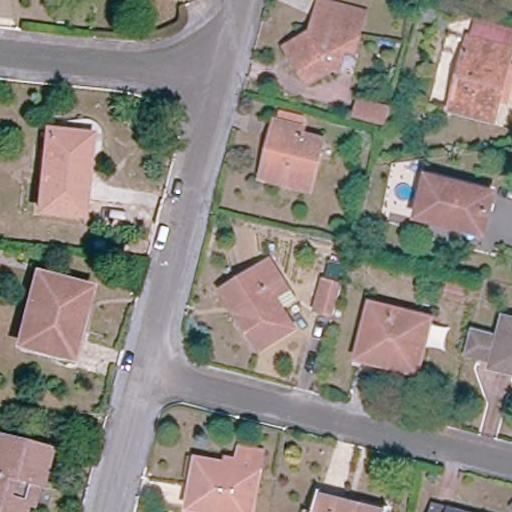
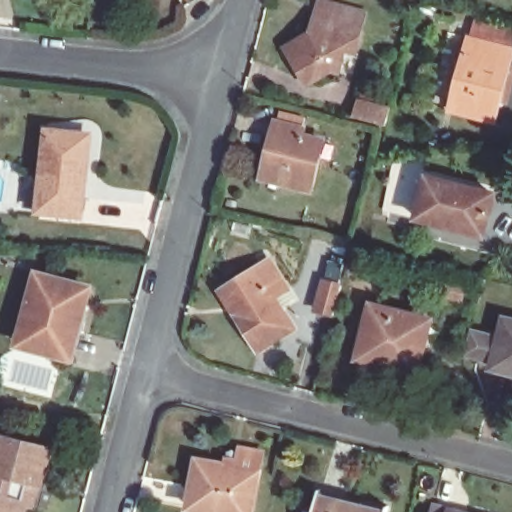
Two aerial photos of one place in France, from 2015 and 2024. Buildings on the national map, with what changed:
unchanged [(305,36),(321,25),(325,12),(328,0),(349,5),(372,11),(363,47),(353,45),(346,70),(336,67),(318,80),(305,56),(296,42),(305,36)]
unchanged [(502,98),(496,119),(454,109),(470,46),(472,40),(478,19),(512,27),(512,56),(510,64),(512,64),(512,95),(511,99),(502,98)]
unchanged [(363,98),(394,105),(388,127),(358,118),(363,98)]
unchanged [(280,140),(283,125),(310,130),(310,138),(329,142),(316,193),(274,183),(267,181),(280,140)]
unchanged [(85,135),(84,169),(93,170),(89,219),(41,213),(48,131),(85,135)]
unchanged [(432,180),(496,195),(486,235),(422,220),(432,180)]
unchanged [(289,287),(278,295),(296,327),(261,347),(242,312),(226,286),(234,281),(272,258),(289,287)]
unchanged [(41,281),(90,296),(84,317),(71,361),(21,346),(41,281)]
unchanged [(317,314),(325,284),(343,288),(335,318),(317,314)]
unchanged [(418,377),(390,370),(361,365),(373,310),(423,320),(430,322),(418,377)]
unchanged [(502,334),(506,317),(512,319),(512,370),(495,365),(496,358),(465,351),(471,327),(502,334)]
unchanged [(51,455),(40,490),(27,486),(21,506),(30,510),(29,512),(0,512),(0,442),(51,455)]
unchanged [(200,468),(235,475),(241,452),(260,457),(246,512),(194,512),(189,510),(200,468)]
unchanged [(325,501),(372,512),(323,512),(325,501)]
unchanged [(437,511),(441,512),(437,512),(437,511)]

